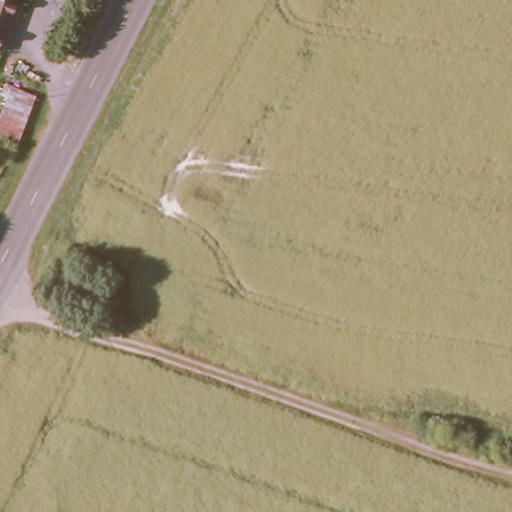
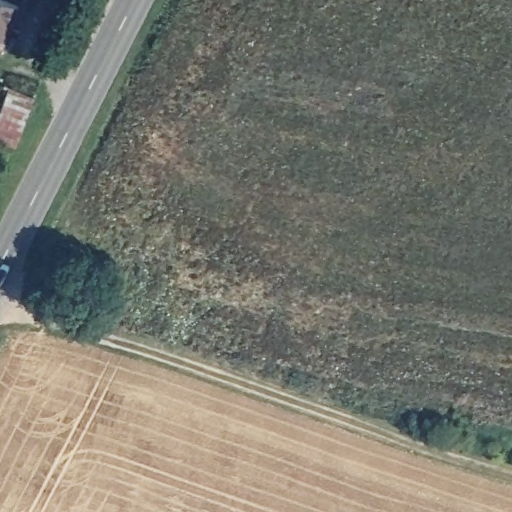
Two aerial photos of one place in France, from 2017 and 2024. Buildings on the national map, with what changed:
unchanged [(3,56),(0,55),(0,3),(21,11),(3,56)]
unchanged [(17,152),(0,143),(0,123),(15,91),(40,102),(17,152)]

